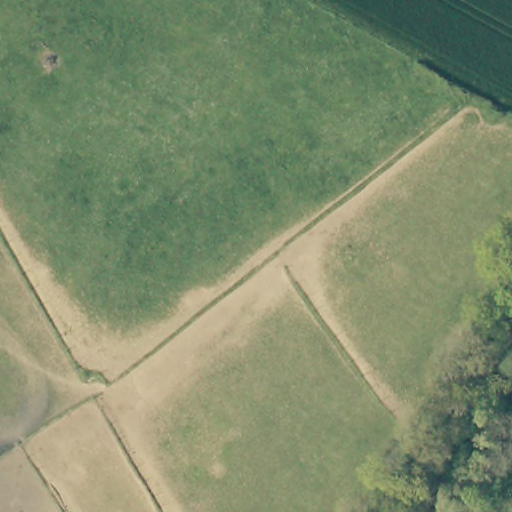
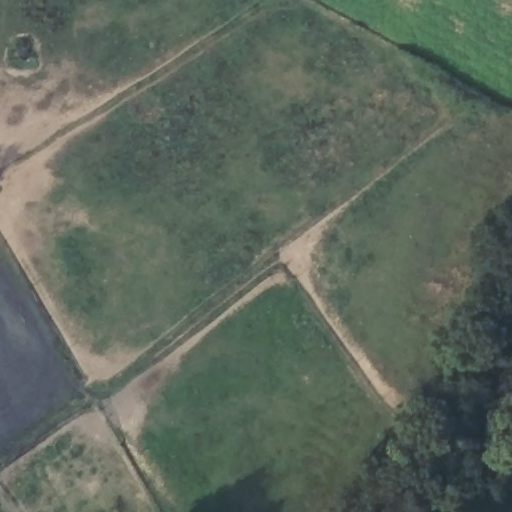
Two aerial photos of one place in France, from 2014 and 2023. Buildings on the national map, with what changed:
[]

